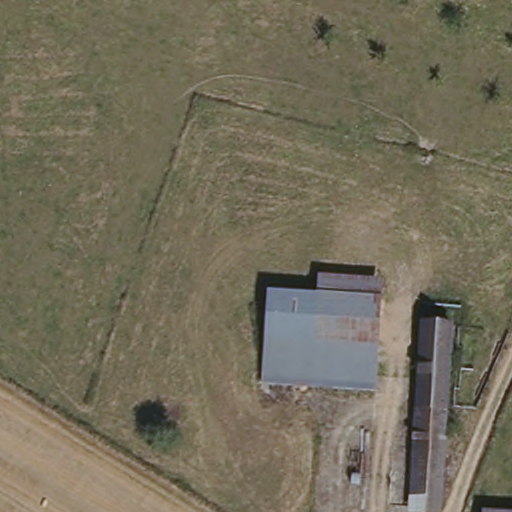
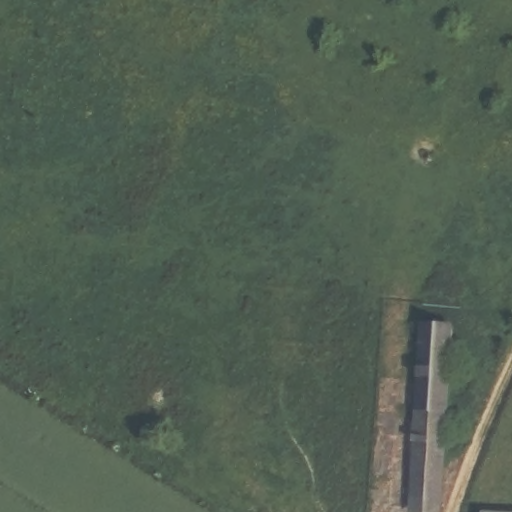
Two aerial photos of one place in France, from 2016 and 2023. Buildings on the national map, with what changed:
demolished [(377,386),(261,379),(270,287),(318,288),(320,271),(382,276),(377,386)]
unchanged [(407,509),(415,425),(427,319),(461,324),(437,512),(407,509)]
unchanged [(490,512),(491,507),(512,509),(512,512),(490,512)]

